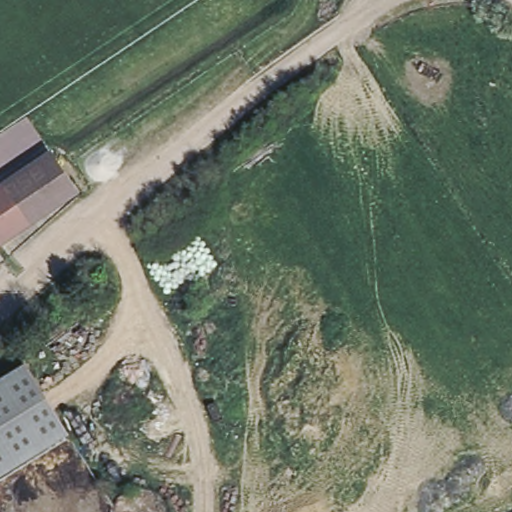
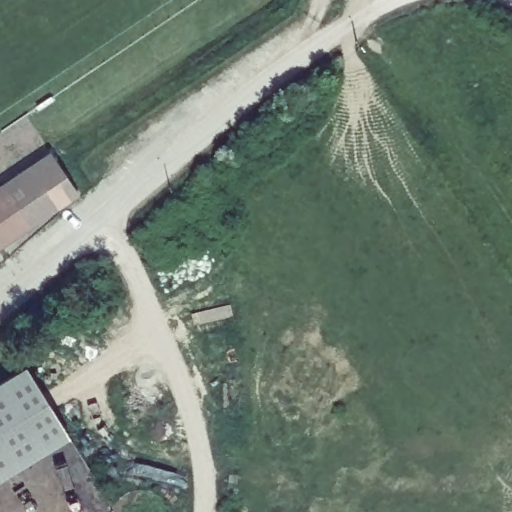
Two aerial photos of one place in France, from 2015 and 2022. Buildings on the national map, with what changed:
unchanged [(52,158),(75,194),(25,227),(2,191),(52,158)]
unchanged [(2,191),(25,227),(0,243),(0,192),(2,191)]
unchanged [(27,364),(70,437),(0,479),(0,381),(27,364)]

